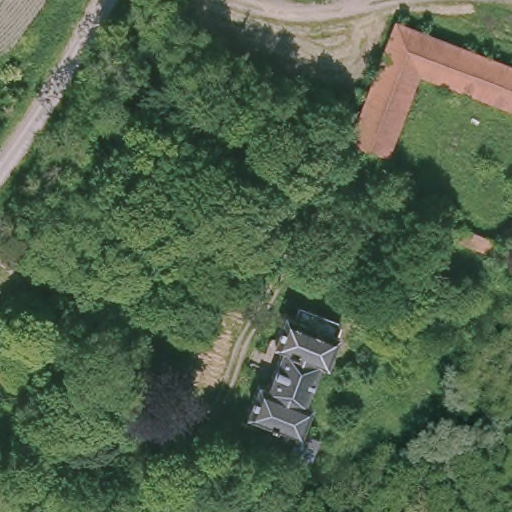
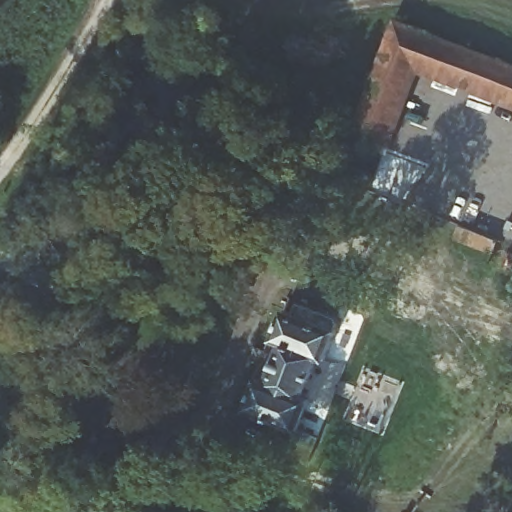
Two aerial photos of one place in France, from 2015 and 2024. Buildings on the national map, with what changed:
unchanged [(395,19),(512,64),(512,102),(429,67),(425,75),(413,70),(383,148),(349,134),(382,52),(395,19)]
unchanged [(496,251),(456,236),(462,221),(501,235),(496,251)]
unchanged [(256,380),(265,384),(279,344),(271,340),(281,311),(289,314),(293,304),(333,318),(335,324),(321,362),(314,359),(300,393),(307,396),(294,428),(246,409),(256,380)]
unchanged [(306,461),(285,452),(294,428),(315,437),(306,461)]

